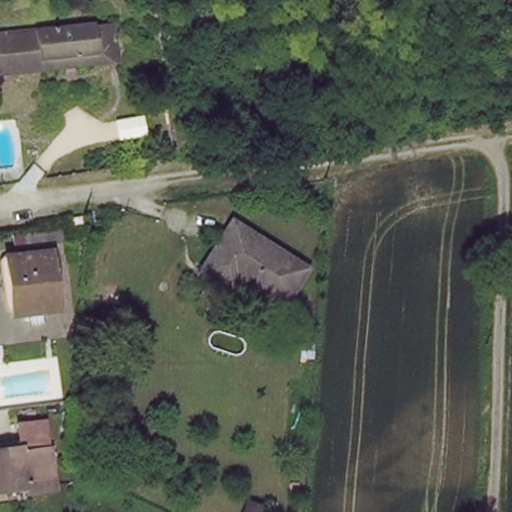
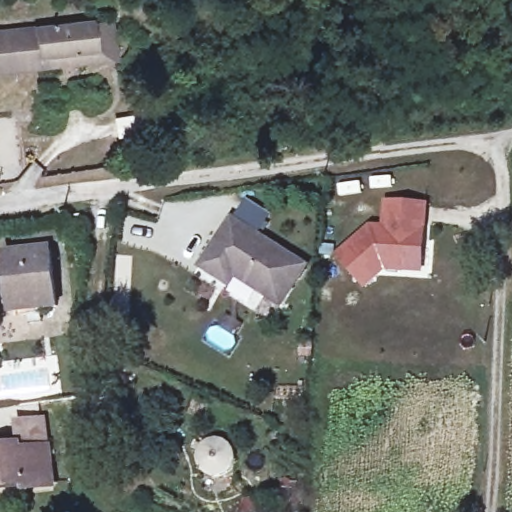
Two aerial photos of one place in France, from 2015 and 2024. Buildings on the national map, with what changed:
unchanged [(108,24),(112,62),(42,71),(41,61),(95,54),(91,26),(108,24)]
unchanged [(0,40),(91,26),(95,54),(41,61),(42,71),(0,77),(0,40)]
new [(334,256),(370,225),(382,225),(383,202),(427,203),(422,273),(385,271),(365,291),(334,256)]
unchanged [(216,281),(199,267),(233,224),(303,275),(278,311),(234,280),(226,289),(216,281)]
unchanged [(60,239),(61,250),(26,254),(26,242),(60,239)]
unchanged [(51,317),(37,318),(37,314),(14,317),(11,282),(5,283),(4,264),(47,261),(51,317)]
unchanged [(22,454),(49,451),(52,485),(0,491),(0,452),(21,450),(22,454)]

